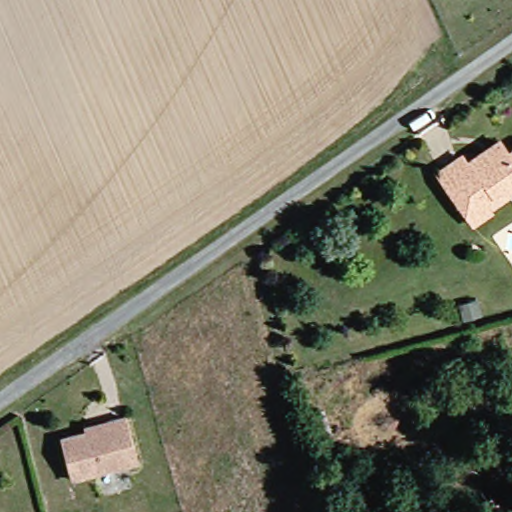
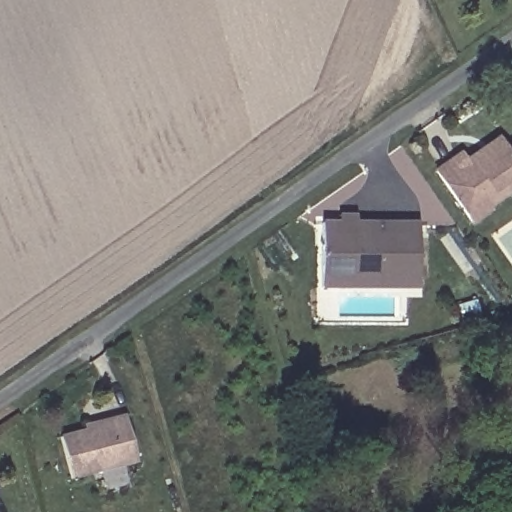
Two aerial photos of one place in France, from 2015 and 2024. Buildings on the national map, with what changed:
unchanged [(475,227),(467,216),(438,172),(461,155),(467,163),(499,141),(507,154),(512,150),(512,199),(494,212),(494,215),(475,227)]
new [(343,287),(317,287),(318,223),(413,224),(412,281),(412,289),(343,287)]
unchanged [(135,463),(67,483),(54,442),(81,434),(80,430),(105,422),(106,423),(121,417),(135,463)]

